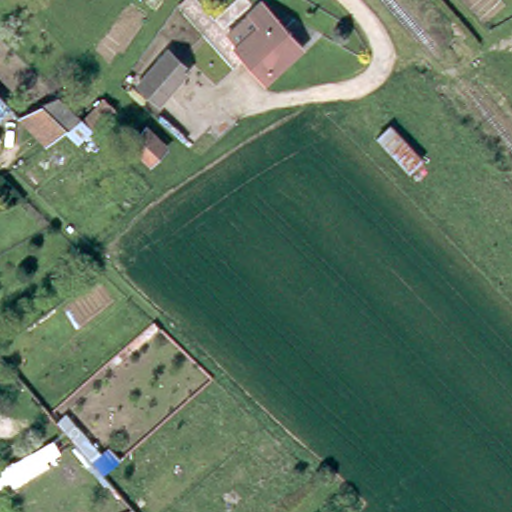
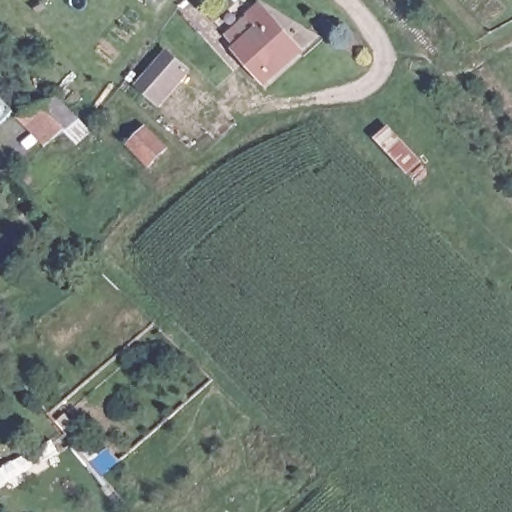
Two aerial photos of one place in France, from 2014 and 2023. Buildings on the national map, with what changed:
unchanged [(265,77),(227,35),(259,5),(297,48),(265,77)]
unchanged [(140,84),(169,51),(189,69),(160,101),(140,84)]
unchanged [(54,88),(79,120),(42,143),(19,114),(54,88)]
unchanged [(0,98),(15,116),(0,126),(0,98)]
unchanged [(142,121),(170,146),(147,170),(125,143),(142,121)]
unchanged [(409,172),(377,139),(388,127),(422,161),(409,172)]

